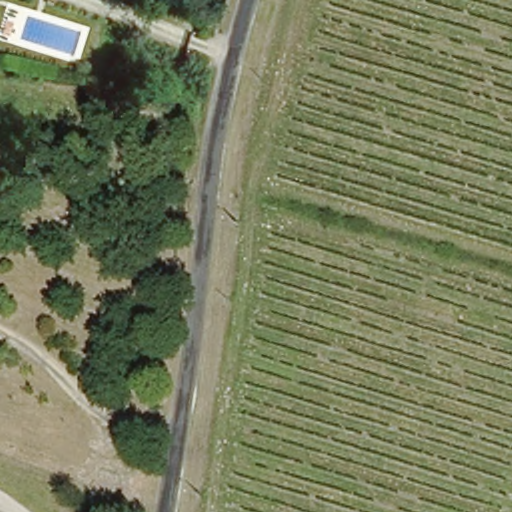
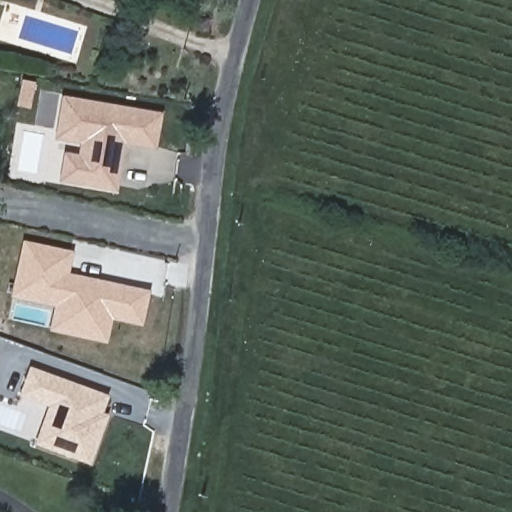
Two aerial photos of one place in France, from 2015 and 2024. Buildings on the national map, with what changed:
new [(113,187),(75,179),(82,140),(58,135),(65,96),(160,115),(154,145),(117,138),(122,139),(119,155),(113,187)]
new [(75,179),(60,177),(65,152),(79,155),(75,179)]
new [(106,344),(49,331),(54,307),(10,298),(24,242),(72,252),(67,274),(150,292),(142,326),(111,320),(106,344)]
new [(41,433),(50,409),(21,398),(31,373),(105,402),(99,419),(105,422),(87,467),(61,457),(36,447),(41,433)]
new [(109,412),(105,422),(99,419),(102,410),(109,412)]

